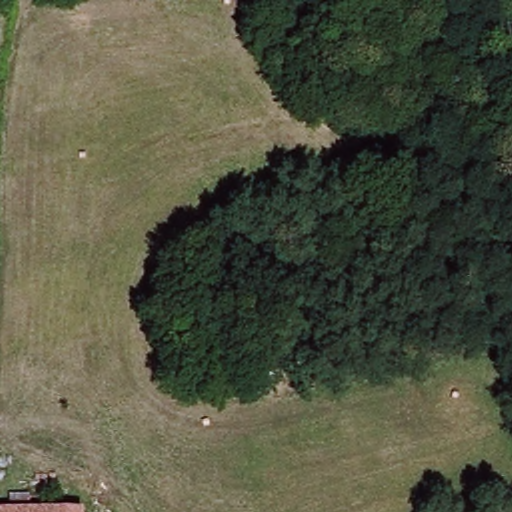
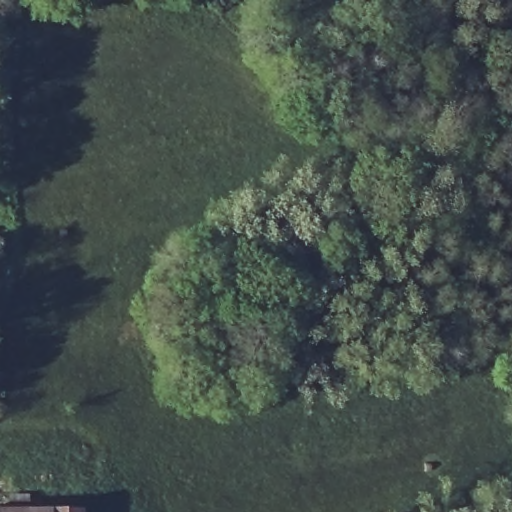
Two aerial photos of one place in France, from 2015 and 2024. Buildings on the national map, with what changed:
unchanged [(10,506),(10,502),(30,502),(30,512),(10,512),(10,506)]

